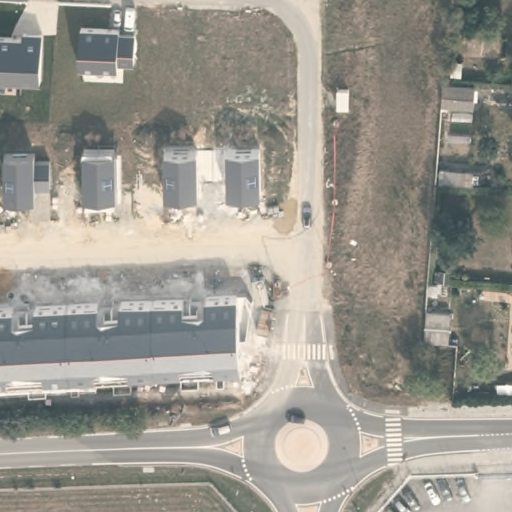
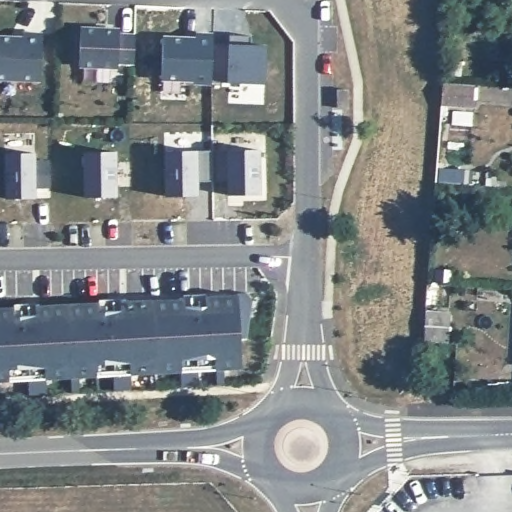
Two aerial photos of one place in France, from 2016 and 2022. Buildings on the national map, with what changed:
unchanged [(115,62),(117,69),(76,67),(75,26),(116,27),(117,34),(135,34),(134,62),(115,62)]
unchanged [(0,80),(0,35),(22,37),(23,30),(41,30),(39,81),(0,80)]
new [(264,84),(226,82),(209,81),(160,78),(162,37),(195,38),(194,34),(211,34),(212,41),(227,42),(227,35),(250,36),(250,44),(266,47),(264,84)]
unchanged [(475,85),(474,107),(441,105),(443,82),(475,85)]
unchanged [(197,181),(197,195),(163,196),(162,154),(259,150),(261,196),(228,196),(227,180),(197,181)]
unchanged [(32,186),(32,197),(3,197),(3,151),(34,151),(35,160),(49,160),(50,187),(32,186)]
unchanged [(82,195),(81,152),(115,151),(116,195),(82,195)]
unchanged [(446,337),(431,336),(433,282),(449,283),(446,337)]
unchanged [(238,338),(242,368),(0,383),(0,308),(12,306),(109,300),(235,295),(247,291),(254,302),(246,336),(238,338)]

